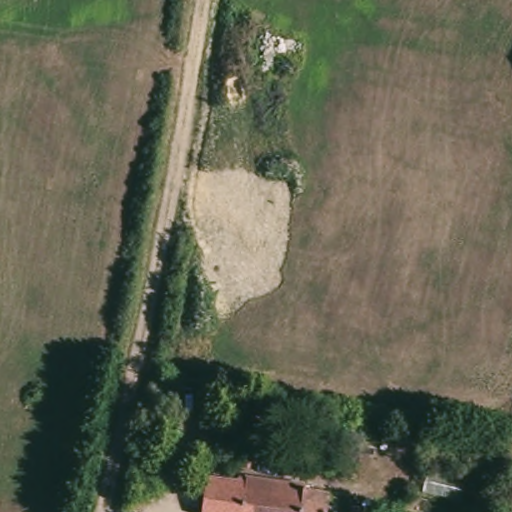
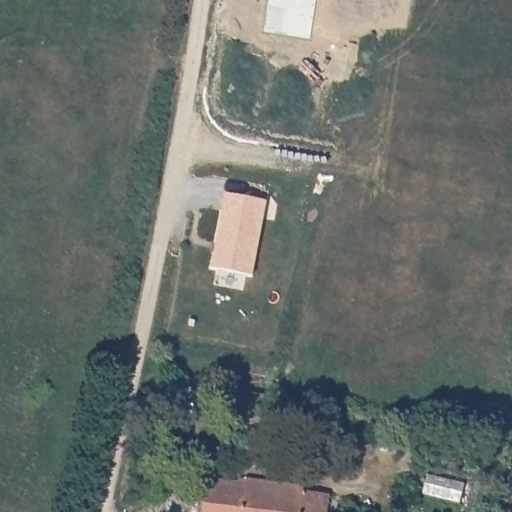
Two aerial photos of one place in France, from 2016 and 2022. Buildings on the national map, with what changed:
new [(221,202),(262,209),(247,284),(207,277),(210,260),(212,250),(221,202)]
unchanged [(190,413),(186,441),(164,437),(168,409),(190,413)]
unchanged [(202,482),(244,488),(245,482),(274,486),(270,512),(197,512),(202,482)]
unchanged [(298,489),(296,497),(327,502),(326,512),(270,512),(274,486),(298,489)]

